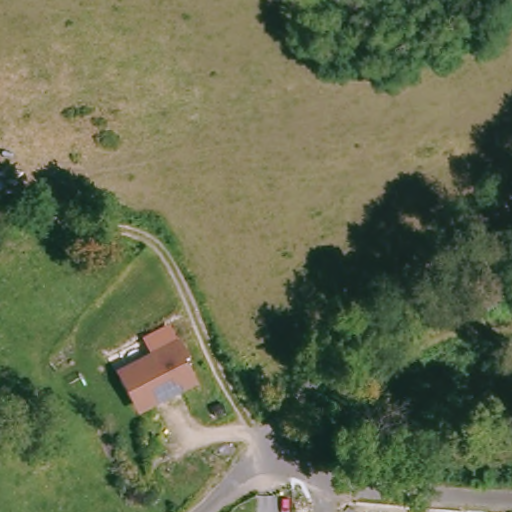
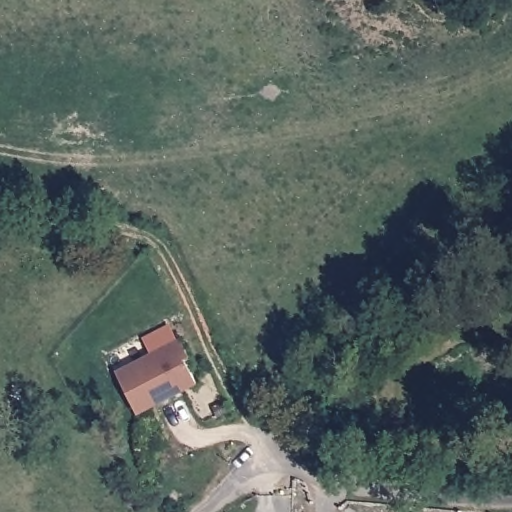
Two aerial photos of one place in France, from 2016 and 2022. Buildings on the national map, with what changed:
unchanged [(154,352),(147,336),(175,323),(181,339),(190,357),(185,359),(195,384),(144,407),(130,402),(119,377),(115,369),(127,364),(154,352)]

